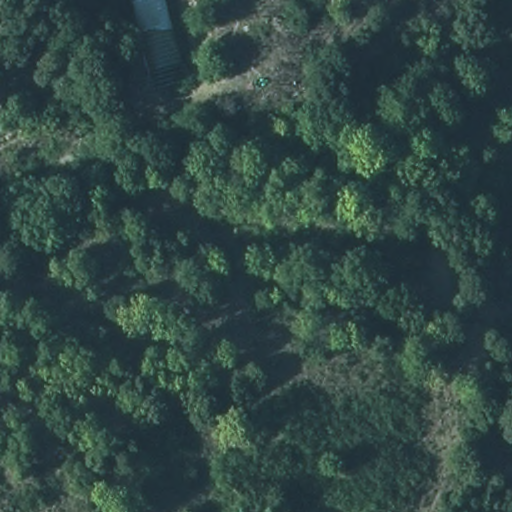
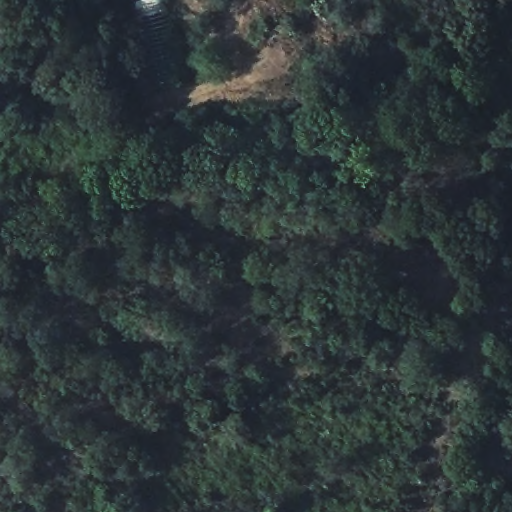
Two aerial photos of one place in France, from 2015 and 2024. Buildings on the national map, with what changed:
unchanged [(155,86),(129,0),(165,0),(189,75),(155,86)]

